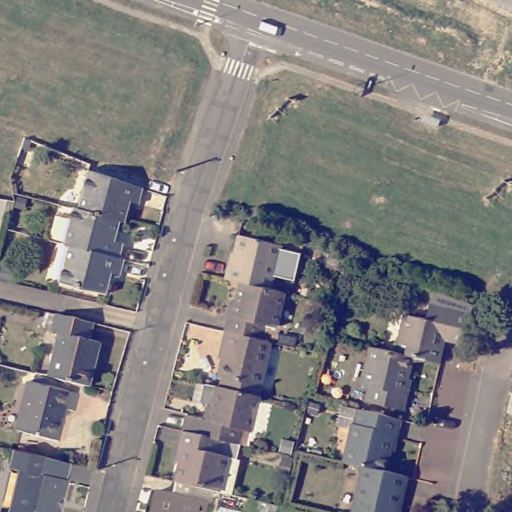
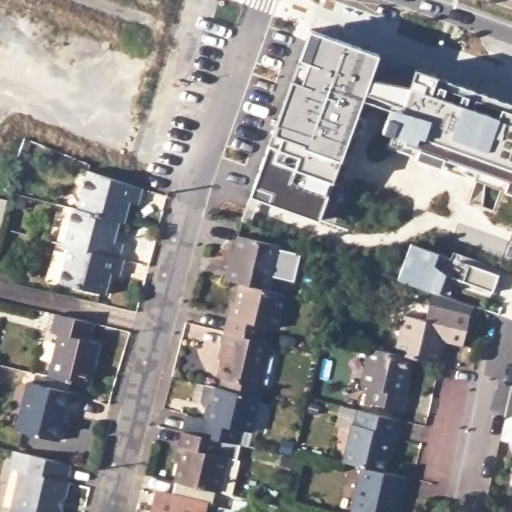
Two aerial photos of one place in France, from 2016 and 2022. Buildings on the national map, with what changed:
new [(272,132),(298,59),(308,29),(378,54),(371,77),(410,84),(415,67),(512,103),(512,191),(504,188),(472,177),(473,169),(464,165),(463,173),(439,164),(413,156),(416,147),(402,142),(401,147),(386,142),(387,132),(380,130),(386,108),(361,100),(357,114),(366,117),(360,135),(349,132),(339,160),(337,159),(331,181),(342,185),(334,206),(322,202),(317,219),(250,196),(272,132)]
demolished [(0,130),(22,138),(16,157),(0,151),(0,130)]
unchanged [(89,168),(146,191),(142,206),(133,205),(128,222),(124,221),(78,210),(89,168)]
unchanged [(73,208),(78,210),(124,221),(117,247),(126,249),(122,262),(66,248),(63,247),(73,208)]
unchanged [(273,290),(243,283),(228,279),(231,264),(237,265),(243,238),(279,246),(283,248),(273,290)]
new [(436,252),(435,254),(495,275),(489,291),(444,277),(436,295),(396,279),(409,242),(436,252)]
unchanged [(121,280),(111,277),(106,297),(58,284),(66,248),(122,262),(126,264),(121,280)]
unchanged [(279,326),(269,323),(265,340),(226,330),(231,313),(235,314),(243,283),(273,290),(287,294),(279,326)]
unchanged [(408,316),(430,321),(434,306),(476,316),(468,346),(447,341),(443,364),(416,358),(399,353),(408,316)]
unchanged [(62,331),(55,329),(59,315),(94,322),(90,338),(102,341),(92,384),(53,375),(62,331)]
unchanged [(263,385),(260,395),(222,385),(225,376),(220,374),(227,347),(223,346),(226,330),(265,340),(273,342),(263,385)]
unchanged [(406,396),(411,397),(408,412),(369,403),(372,388),(365,385),(374,347),(399,353),(416,358),(406,396)]
new [(511,381),(512,379),(512,382),(511,381)]
unchanged [(213,419),(221,385),(222,385),(260,395),(264,396),(256,430),(246,428),(242,444),(204,434),(189,430),(193,413),(213,419)]
unchanged [(29,387),(79,398),(75,412),(69,411),(61,443),(18,433),(29,387)]
demolished [(509,395),(512,396),(512,415),(505,413),(509,395)]
unchanged [(359,410),(406,422),(402,437),(397,436),(388,471),(365,465),(347,461),(359,410)]
new [(508,442),(499,440),(504,419),(512,416),(512,458),(508,442)]
unchanged [(179,480),(186,447),(182,446),(186,429),(189,430),(204,434),(242,444),(238,459),(242,460),(235,493),(222,490),(179,480)]
unchanged [(56,512),(8,512),(19,464),(8,462),(11,444),(64,457),(61,474),(65,474),(61,491),(58,502),(56,512)]
unchanged [(365,465),(388,471),(411,477),(408,491),(404,490),(400,512),(355,512),(365,465)]
unchanged [(156,489),(205,501),(203,512),(150,512),(156,489)]

